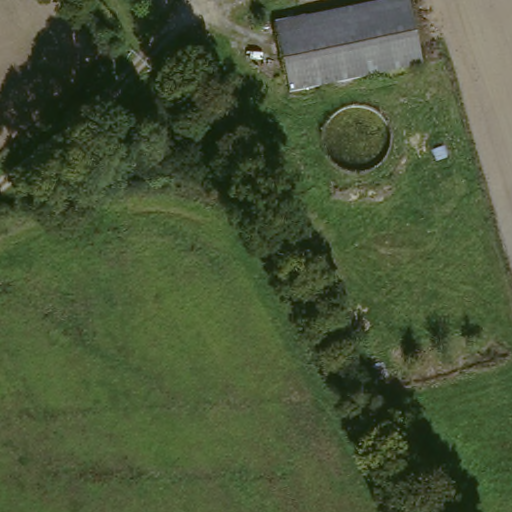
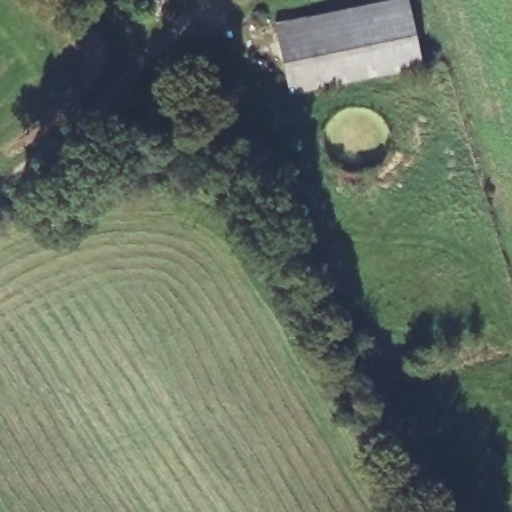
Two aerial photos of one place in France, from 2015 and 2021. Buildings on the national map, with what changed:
unchanged [(384,0),(409,0),(427,63),(298,98),(278,30),(285,28),(384,0)]

